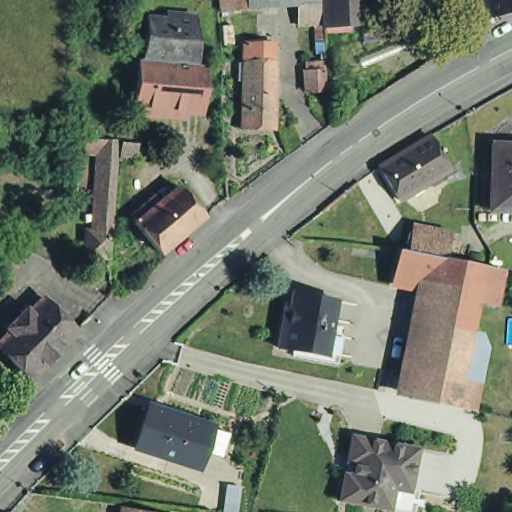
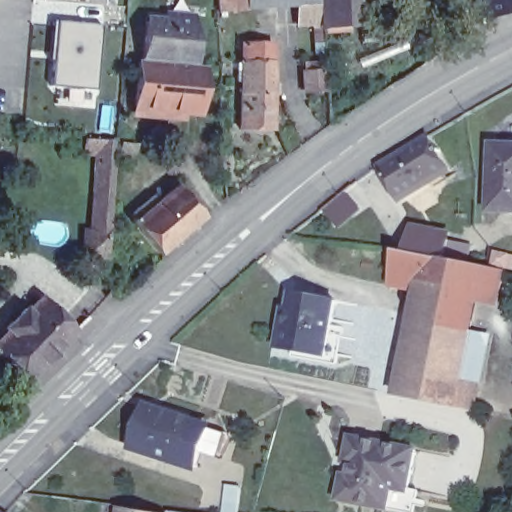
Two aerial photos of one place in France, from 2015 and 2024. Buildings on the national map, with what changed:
unchanged [(302,6),(301,2),(252,5),(252,10),(227,11),(226,0),(319,0),(319,5),(320,23),(303,24),(302,6)]
unchanged [(326,28),(324,0),(387,0),(389,26),(385,26),(385,29),(382,29),(383,44),(361,45),(360,26),(326,28)]
unchanged [(480,0),(512,0),(512,16),(485,24),(480,0)]
unchanged [(147,62),(150,21),(172,24),(173,18),(198,20),(202,66),(147,62)]
new [(100,24),(95,90),(50,85),(56,21),(100,24)]
unchanged [(276,130),(243,129),(244,91),(246,91),(246,81),(240,81),(240,63),(244,62),(244,60),(246,61),(246,43),(275,44),(275,61),(277,61),(276,130)]
unchanged [(138,116),(139,108),(143,61),(147,62),(202,66),(210,66),(206,113),(190,111),(189,120),(138,116)]
unchanged [(323,91),(305,92),(304,71),(322,71),(323,91)]
unchanged [(88,224),(95,224),(100,150),(86,149),(86,139),(119,141),(118,151),(113,226),(110,259),(87,257),(88,224)]
unchanged [(438,186),(407,204),(387,171),(436,141),(456,175),(451,178),(455,183),(441,191),(438,186)]
unchanged [(496,149),(512,149),(512,216),(493,215),(496,149)]
unchanged [(211,218),(167,255),(141,224),(142,223),(140,221),(142,219),(139,216),(146,211),(154,205),(161,199),(165,204),(184,187),(211,218)]
unchanged [(455,233),(451,262),(447,261),(442,260),(411,253),(415,226),(455,233)]
unchanged [(330,266),(333,243),(351,245),(348,268),(330,266)]
unchanged [(395,276),(400,251),(407,252),(411,253),(442,260),(436,285),(395,276)]
unchanged [(413,401),(436,285),(442,260),(447,261),(451,262),(485,269),(506,273),(499,309),(478,305),(473,332),(486,335),(490,350),(481,388),(476,414),(457,410),(413,401)]
unchanged [(436,285),(413,401),(395,397),(415,294),(393,289),(395,276),(436,285)]
unchanged [(322,351),(275,342),(279,318),(284,319),(290,288),(333,296),(327,330),(339,332),(334,359),(321,356),(322,351)]
unchanged [(48,304),(82,337),(36,386),(2,353),(15,338),(12,335),(32,315),(35,318),(48,304)]
unchanged [(224,463),(205,458),(200,473),(139,454),(151,414),(213,433),(231,439),(224,463)]
unchanged [(413,491),(422,493),(419,512),(392,512),(342,503),(352,438),(422,449),(413,491)]
unchanged [(222,487),(235,488),(231,512),(218,512),(222,487)]
unchanged [(121,510),(136,512),(121,512),(121,510)]
unchanged [(169,512),(161,512),(162,511),(169,512)]

